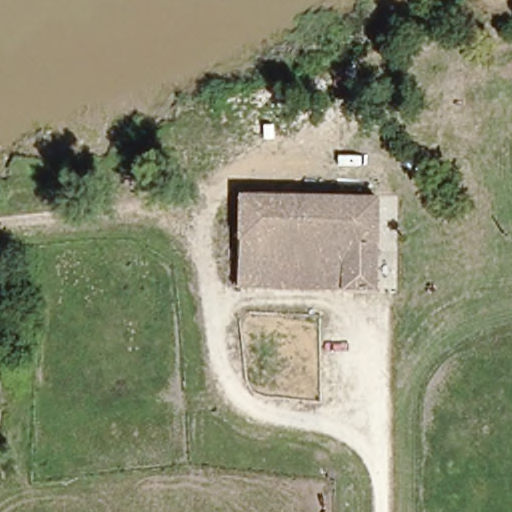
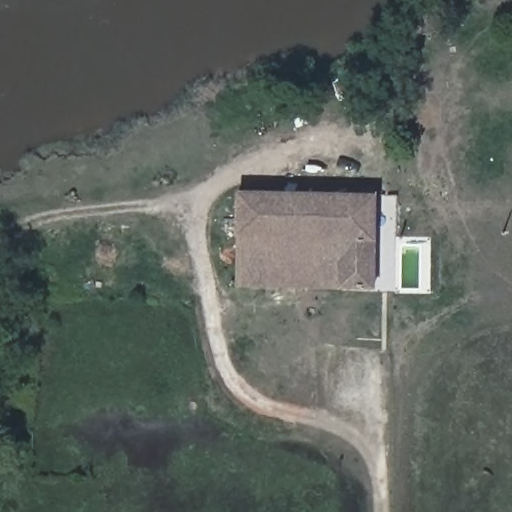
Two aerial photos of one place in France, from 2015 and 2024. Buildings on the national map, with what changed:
unchanged [(367,292),(229,290),(231,189),(369,191),(367,292)]

